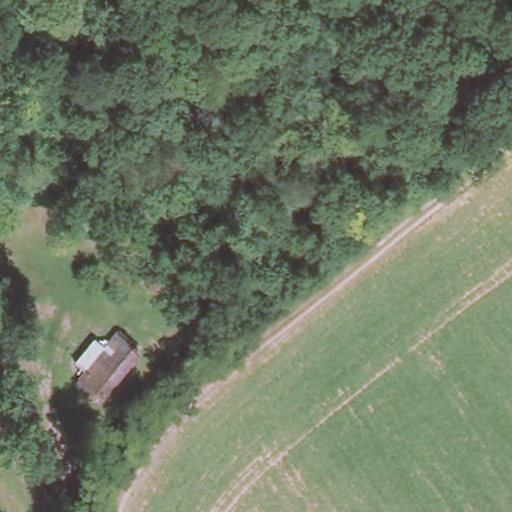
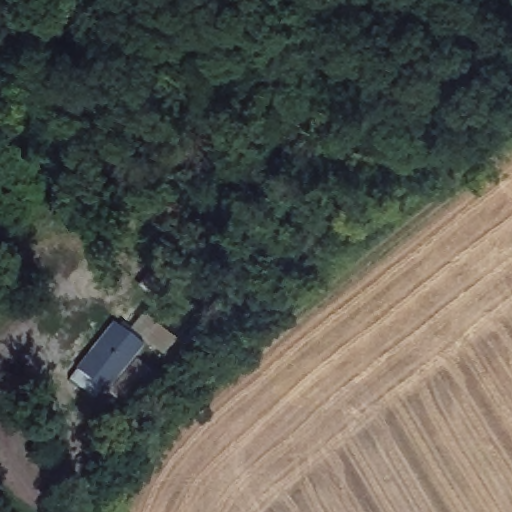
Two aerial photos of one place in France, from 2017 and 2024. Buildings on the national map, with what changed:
unchanged [(140,352),(105,397),(82,378),(115,332),(140,352)]

